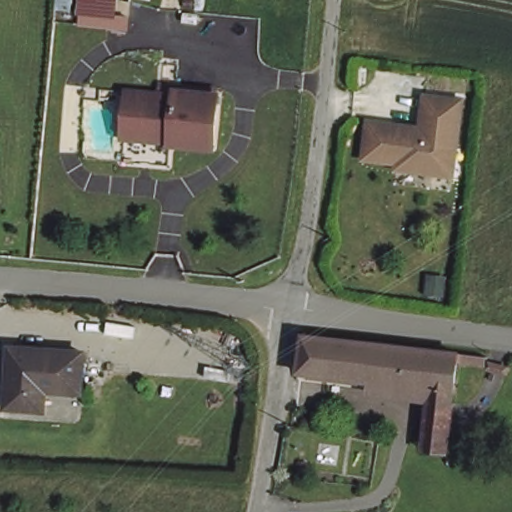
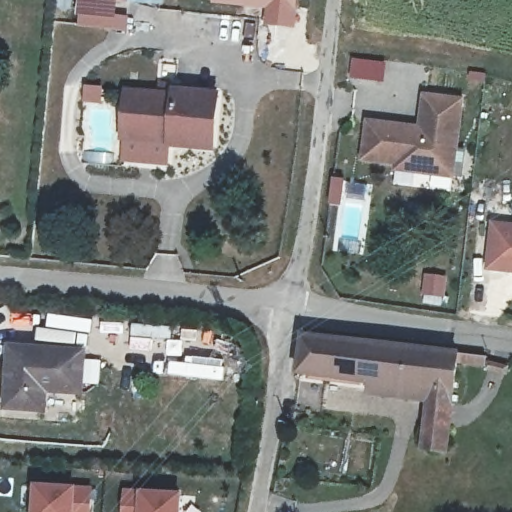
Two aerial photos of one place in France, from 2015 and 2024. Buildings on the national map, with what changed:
unchanged [(77,13),(78,0),(120,0),(118,16),(77,13)]
new [(298,0),(295,29),(262,25),(264,9),(210,4),(211,0),(298,0)]
unchanged [(124,163),(125,141),(127,93),(220,99),(219,150),(172,146),(170,167),(124,163)]
unchanged [(397,166),(365,163),(370,126),(423,134),(425,100),(464,106),(457,154),(454,180),(432,178),(417,176),(397,173),(397,166)]
new [(490,222),(512,224),(512,274),(485,270),(490,222)]
unchanged [(389,399),(390,386),(305,377),(308,342),(462,359),(456,407),(451,453),(430,450),(435,404),(389,399)]
unchanged [(32,411),(10,409),(16,348),(86,354),(83,391),(52,389),(49,413),(32,411)]
new [(33,483),(77,486),(92,488),(90,512),(31,512),(33,483)]
new [(124,489),(139,491),(182,494),(182,512),(122,512),(124,489)]

